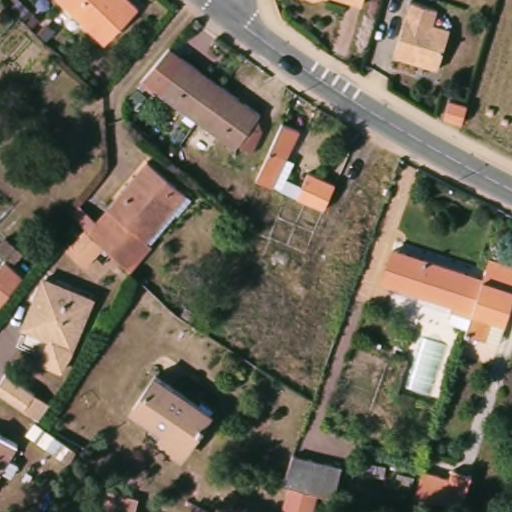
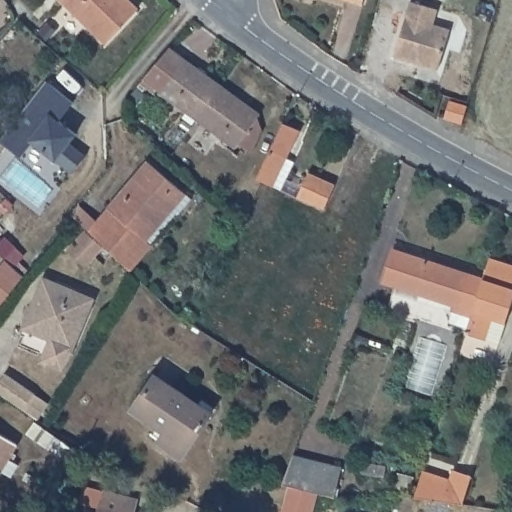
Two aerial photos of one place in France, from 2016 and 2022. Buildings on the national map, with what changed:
unchanged [(56,0),(102,0),(83,25),(56,0)]
unchanged [(135,6),(102,43),(83,25),(102,0),(128,0),(135,6)]
unchanged [(316,2),(307,0),(321,0),(316,2)]
unchanged [(364,10),(347,4),(333,0),(368,0),(364,10)]
unchanged [(433,9),(428,25),(448,31),(436,71),(390,56),(407,1),(433,9)]
unchanged [(179,55),(268,123),(268,124),(272,136),(261,159),(249,151),(245,156),(169,99),(152,86),(179,55)]
new [(46,83),(74,105),(60,123),(77,136),(70,146),(86,158),(73,176),(33,145),(22,160),(0,143),(46,83)]
unchanged [(151,106),(142,99),(152,86),(160,94),(151,106)]
unchanged [(466,106),(460,128),(443,122),(450,101),(466,106)]
unchanged [(278,188),(269,184),(259,180),(253,177),(261,159),(272,136),(279,120),(295,128),(283,154),(292,157),(278,188)]
unchanged [(126,269),(118,261),(93,236),(87,231),(70,215),(79,204),(95,221),(105,208),(142,159),(176,185),(183,190),(170,208),(146,239),(147,240),(126,269)]
unchanged [(333,182),(322,206),(294,195),(306,170),(333,182)]
unchanged [(382,280),(391,249),(401,252),(459,272),(483,280),(473,311),(391,284),(382,280)]
unchanged [(466,331),(473,311),(483,280),(490,256),(512,264),(512,301),(506,321),(499,341),(485,337),(466,331)]
unchanged [(2,257),(20,273),(0,299),(0,261),(2,257)]
unchanged [(93,305),(64,346),(23,316),(52,276),(93,305)]
unchanged [(154,377),(209,415),(179,458),(156,442),(162,435),(129,412),(154,377)]
new [(44,427),(30,417),(1,397),(12,381),(40,401),(54,411),(44,427)]
unchanged [(32,427),(71,453),(64,464),(25,437),(32,427)]
unchanged [(0,491),(0,433),(2,434),(26,448),(0,491)]
unchanged [(339,467),(333,497),(324,496),(282,485),(286,474),(293,456),(339,467)]
unchanged [(454,473),(457,464),(478,470),(468,502),(457,500),(419,493),(428,465),(454,473)]
unchanged [(106,486),(139,493),(136,508),(154,512),(97,512),(100,500),(103,500),(106,486)]

